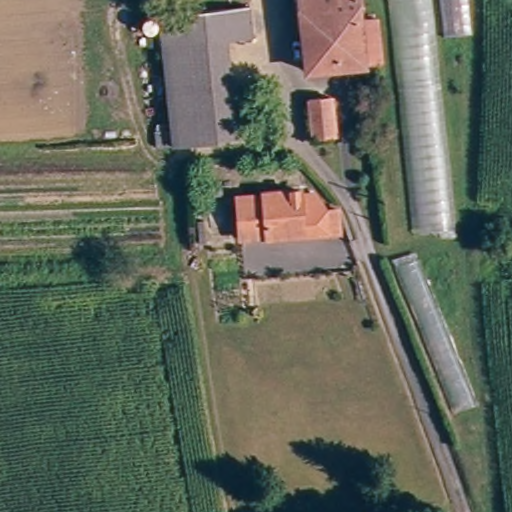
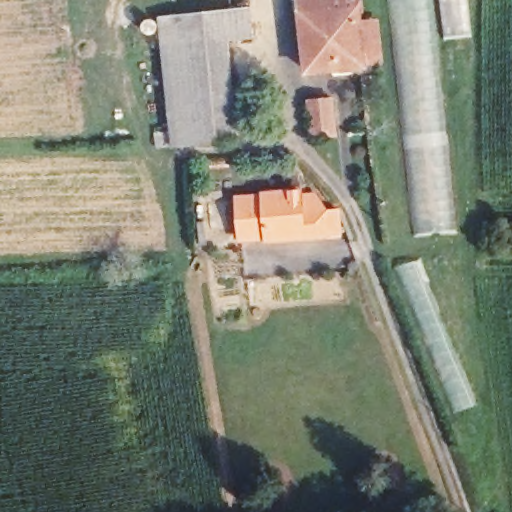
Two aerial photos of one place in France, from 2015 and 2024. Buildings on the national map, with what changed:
unchanged [(311,69),(302,0),(359,0),(361,16),(377,15),(382,60),(367,62),(311,69)]
unchanged [(421,235),(412,235),(390,0),(430,0),(455,229),(421,235)]
unchanged [(443,0),(471,0),(475,38),(447,41),(443,0)]
unchanged [(234,141),(193,145),(172,148),(157,22),(191,18),(247,11),(251,39),(222,42),(234,141)]
unchanged [(333,136),(313,138),(309,98),(328,96),(333,136)]
unchanged [(318,189),(328,210),(343,211),(345,236),(299,236),(298,214),(293,214),(282,190),(318,189)]
unchanged [(237,191),(282,190),(293,214),(237,216),(237,191)]
unchanged [(299,236),(237,237),(237,216),(293,214),(298,214),(299,236)]
unchanged [(412,256),(472,402),(453,415),(391,268),(412,256)]

